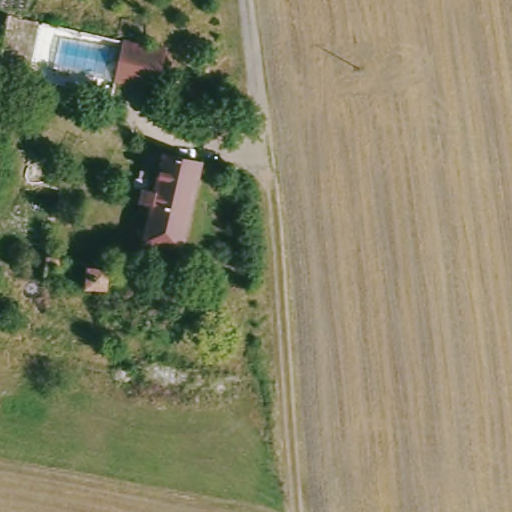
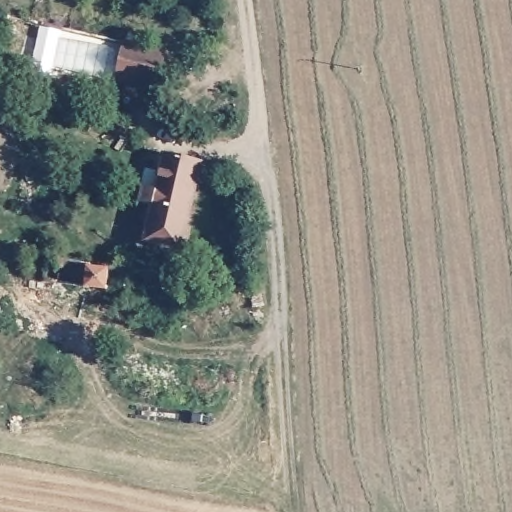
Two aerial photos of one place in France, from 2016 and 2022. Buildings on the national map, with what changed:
unchanged [(150,92),(108,82),(117,43),(158,52),(150,92)]
unchanged [(176,250),(138,242),(147,205),(133,202),(136,187),(150,190),(158,152),(194,161),(190,184),(176,250)]
unchanged [(103,290),(85,288),(45,281),(48,257),(89,264),(106,266),(103,290)]

